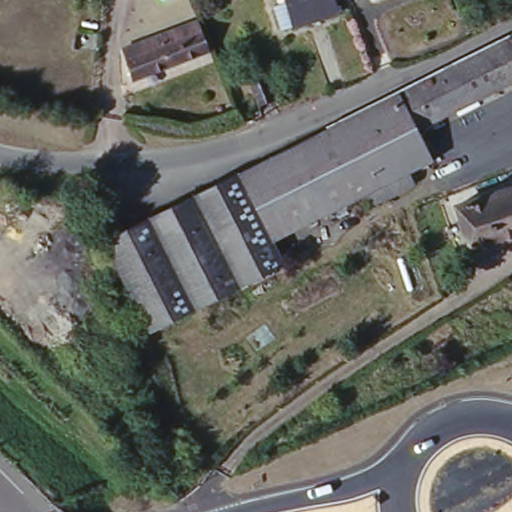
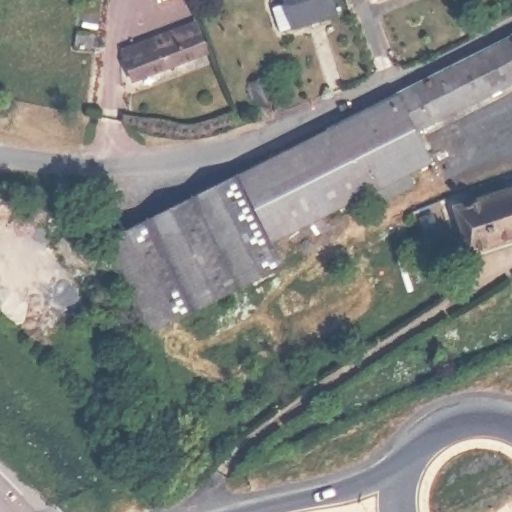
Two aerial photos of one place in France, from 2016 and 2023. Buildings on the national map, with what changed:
unchanged [(278,6),(291,0),(338,0),(341,9),(301,24),(286,30),(278,6)]
unchanged [(209,51),(135,76),(129,54),(126,43),(135,40),(198,19),(209,51)]
unchanged [(512,30),(512,81),(415,131),(414,131),(395,93),(458,59),(512,30)]
unchanged [(261,66),(272,93),(257,97),(247,72),(261,66)]
unchanged [(387,97),(395,93),(414,131),(415,131),(430,160),(407,173),(367,196),(299,229),(269,156),(387,97)]
unchanged [(299,229),(275,237),(287,260),(145,327),(102,232),(269,156),(299,229)]
unchanged [(461,216),(512,199),(512,248),(476,261),(461,216)]

